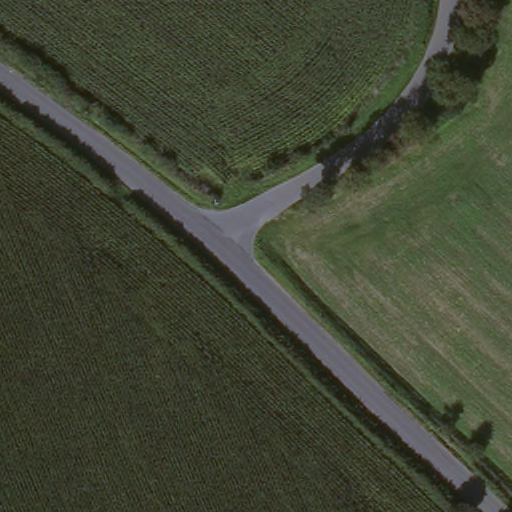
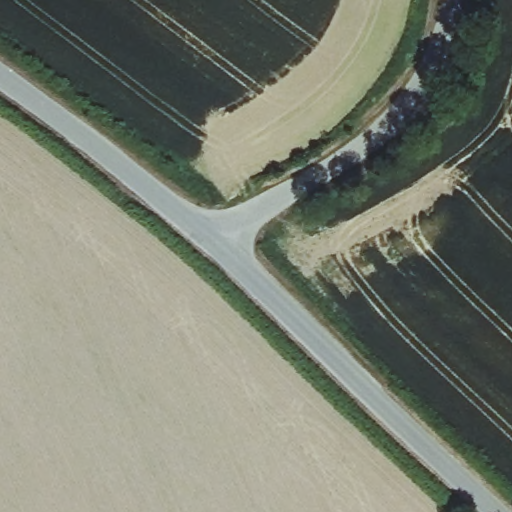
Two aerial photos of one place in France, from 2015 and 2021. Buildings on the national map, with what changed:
[]

